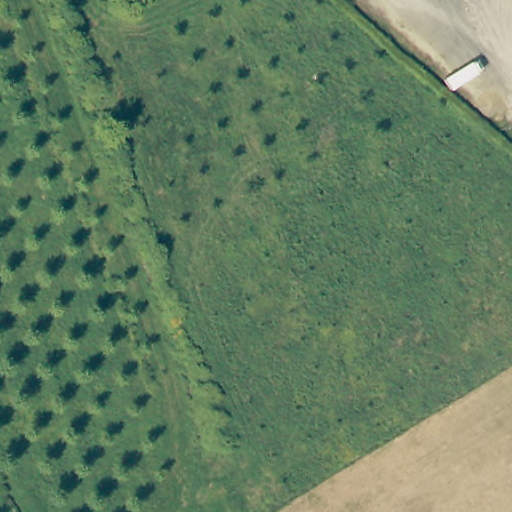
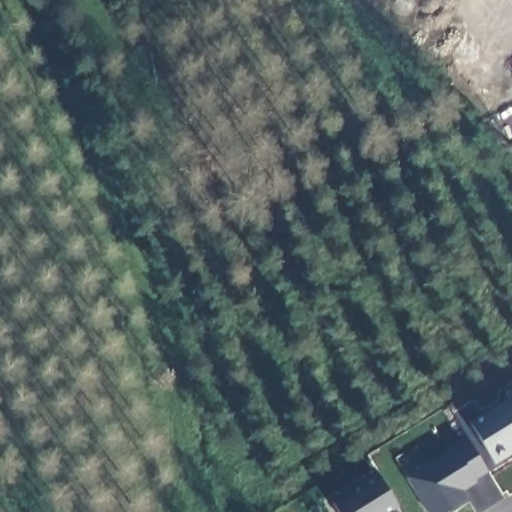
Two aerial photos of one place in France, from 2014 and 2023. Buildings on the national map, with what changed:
new [(469,422),(510,396),(506,390),(512,387),(512,451),(511,451),(493,462),(469,422)]
new [(468,500),(448,512),(425,512),(404,476),(465,436),(487,471),(463,490),(468,500)]
new [(337,512),(330,501),(357,486),(355,481),(375,470),(398,507),(391,512),(337,512)]

